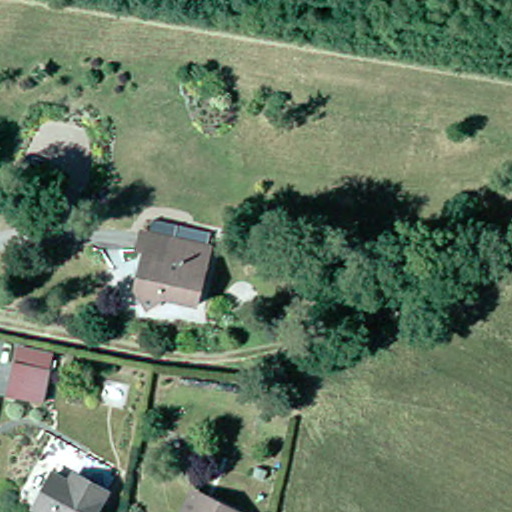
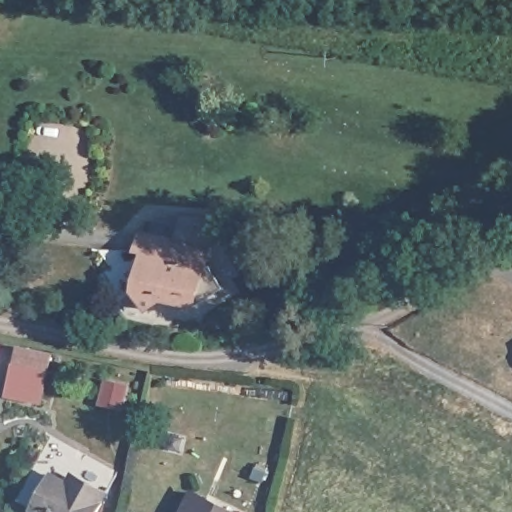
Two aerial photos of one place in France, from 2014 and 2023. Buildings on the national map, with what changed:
unchanged [(190,302),(156,295),(139,305),(128,288),(143,278),(134,263),(137,249),(128,248),(133,229),(203,244),(190,302)]
unchanged [(54,354),(43,404),(9,396),(20,347),(54,354)]
unchanged [(92,512),(45,512),(30,504),(51,469),(66,477),(68,472),(79,478),(103,492),(92,512)]
unchanged [(192,489),(237,512),(180,512),(192,489)]

